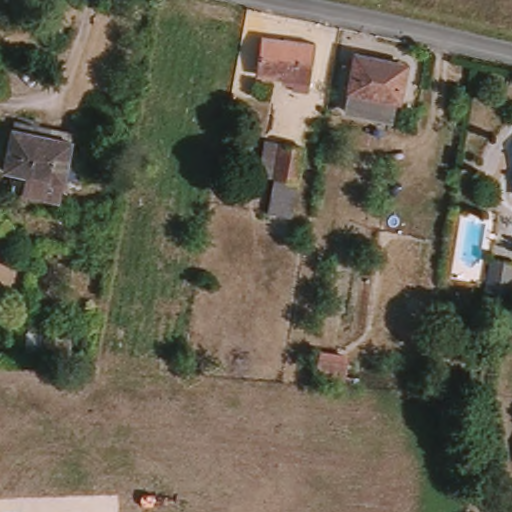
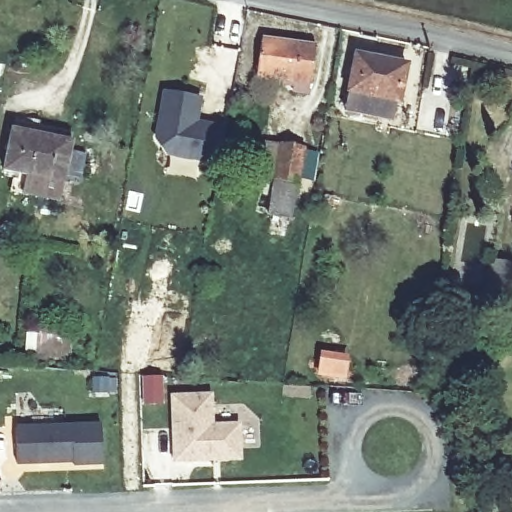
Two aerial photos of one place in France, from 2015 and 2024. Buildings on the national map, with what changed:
unchanged [(287,78),(259,72),(266,39),(314,47),(311,58),(313,63),(305,97),(285,93),(287,78)]
unchanged [(353,62),(406,74),(398,108),(383,104),(378,121),(343,115),(353,62)]
new [(166,92),(202,97),(198,122),(228,127),(222,163),(170,156),(159,139),(166,92)]
unchanged [(15,193),(19,178),(7,175),(17,130),(71,145),(61,189),(58,205),(15,193)]
unchanged [(266,144),(302,151),(291,225),(269,221),(274,186),(259,182),(266,144)]
unchanged [(495,257),(512,262),(512,271),(512,273),(505,308),(485,304),(492,272),(495,257)]
new [(171,394),(213,393),(214,423),(240,423),(241,460),(173,462),(171,394)]
new [(16,426),(102,422),(103,466),(74,467),(73,463),(16,465),(16,426)]

